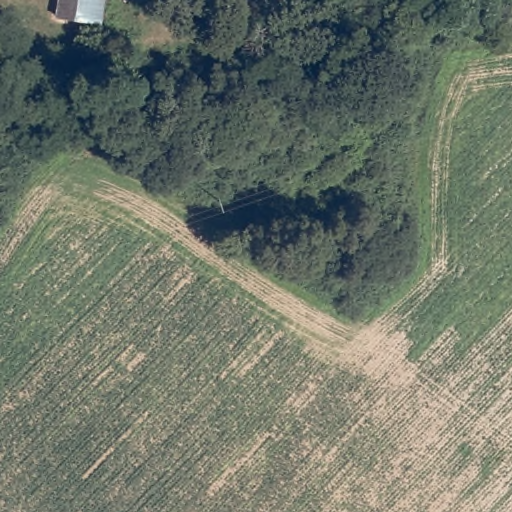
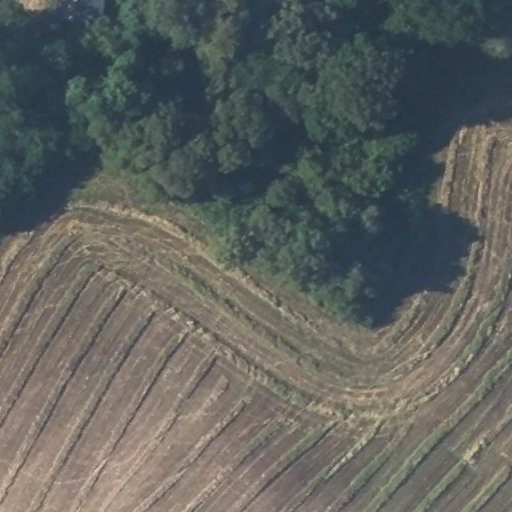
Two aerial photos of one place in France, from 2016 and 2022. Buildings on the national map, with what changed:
unchanged [(75,20),(54,16),(57,0),(79,0),(75,20)]

